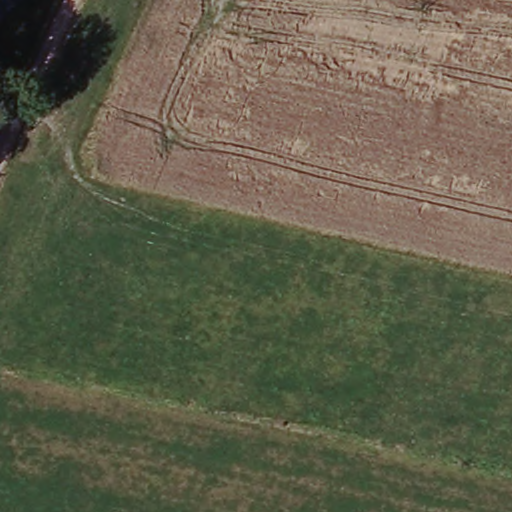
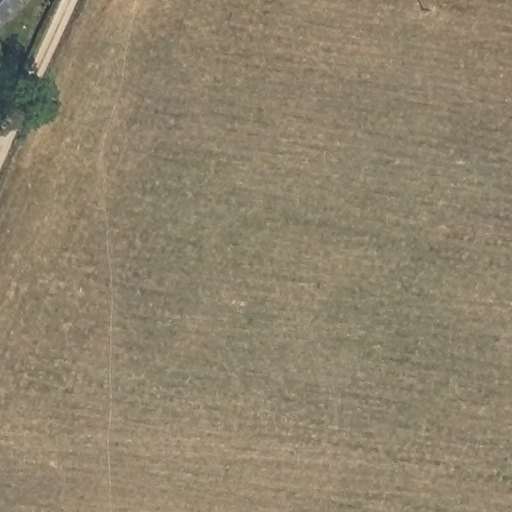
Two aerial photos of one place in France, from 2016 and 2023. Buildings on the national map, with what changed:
unchanged [(0,0),(20,0),(0,22),(0,0)]

